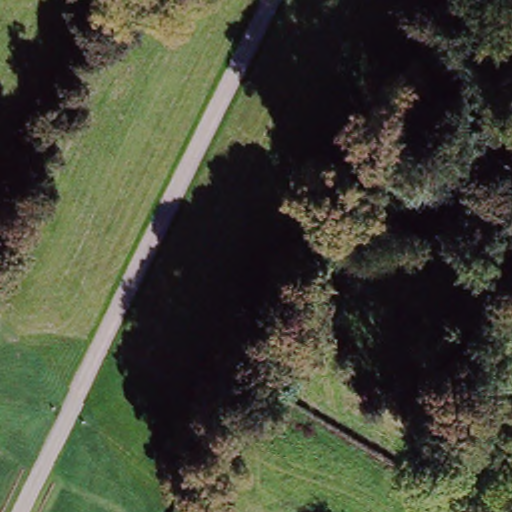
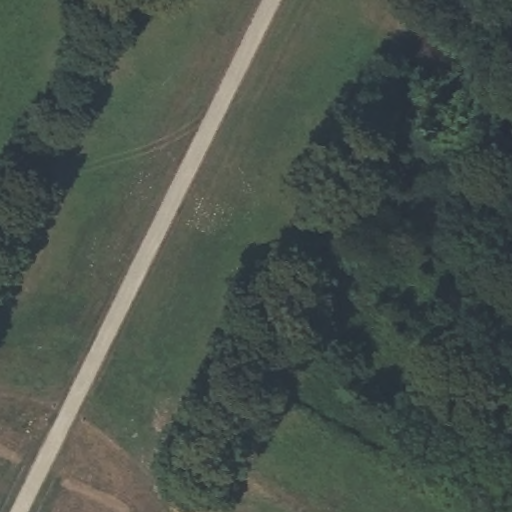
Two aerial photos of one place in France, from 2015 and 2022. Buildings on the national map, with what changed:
[]

